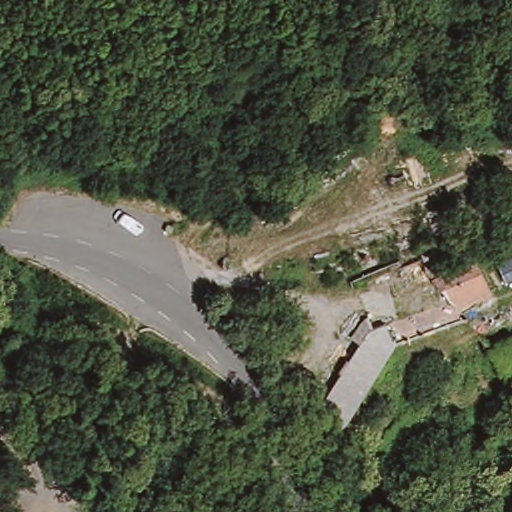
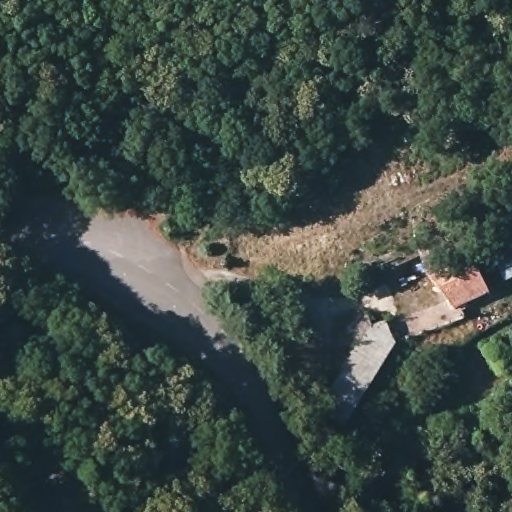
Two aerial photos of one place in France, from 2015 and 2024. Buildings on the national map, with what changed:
unchanged [(436,273),(478,254),(491,292),(458,304),(436,273)]
unchanged [(358,340),(346,331),(359,314),(394,329),(344,412),(320,400),(358,340)]
unchanged [(330,432),(333,451),(317,454),(313,435),(330,432)]

